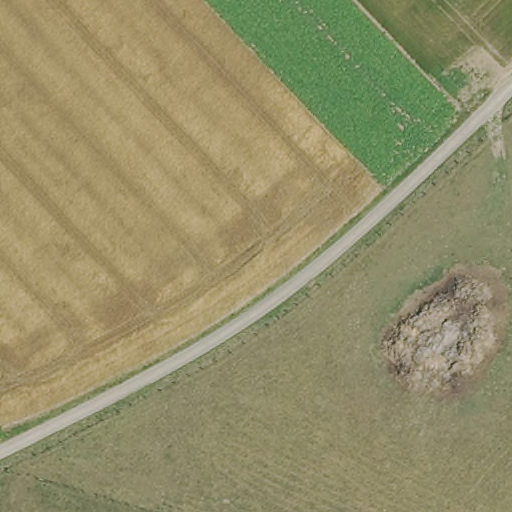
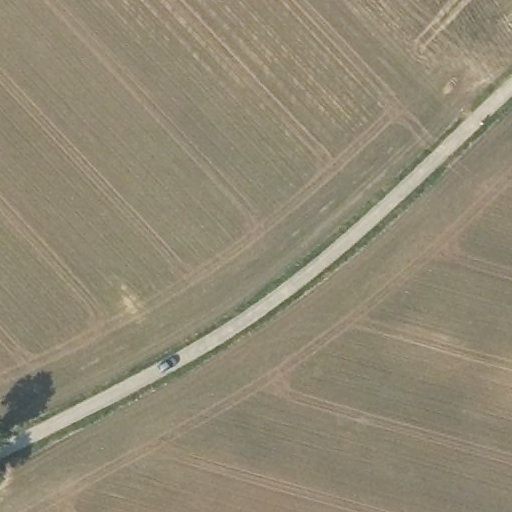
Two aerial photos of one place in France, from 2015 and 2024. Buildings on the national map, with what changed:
[]

